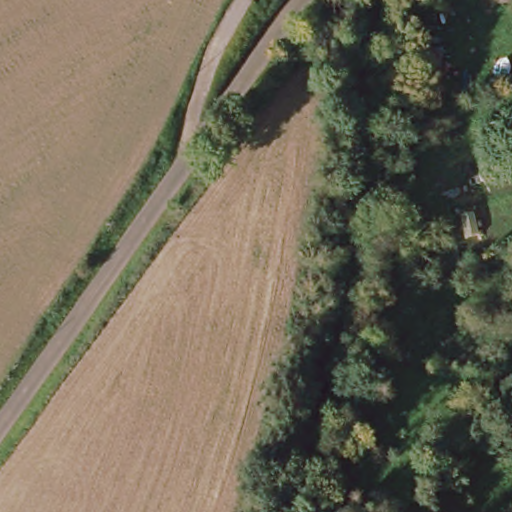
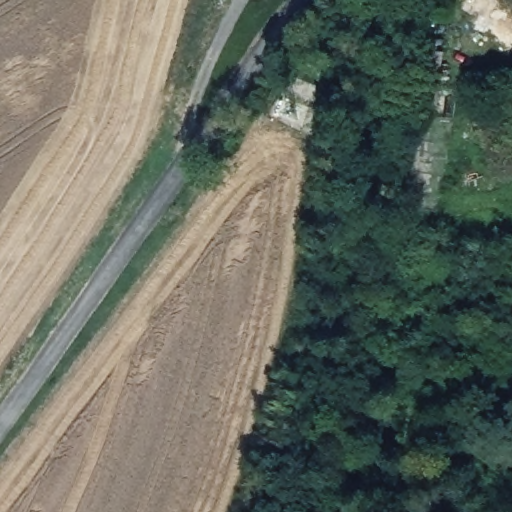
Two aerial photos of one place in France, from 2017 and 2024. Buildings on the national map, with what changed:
[]

